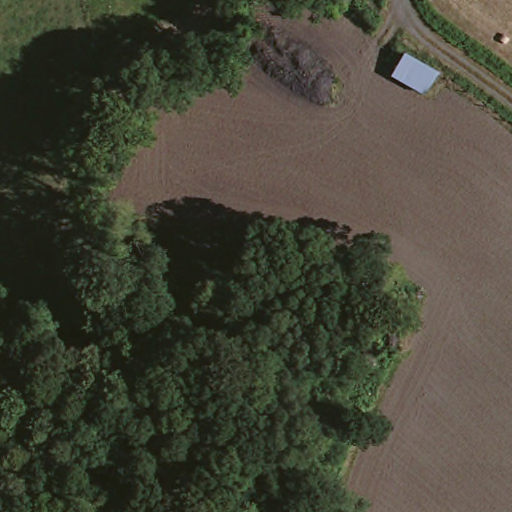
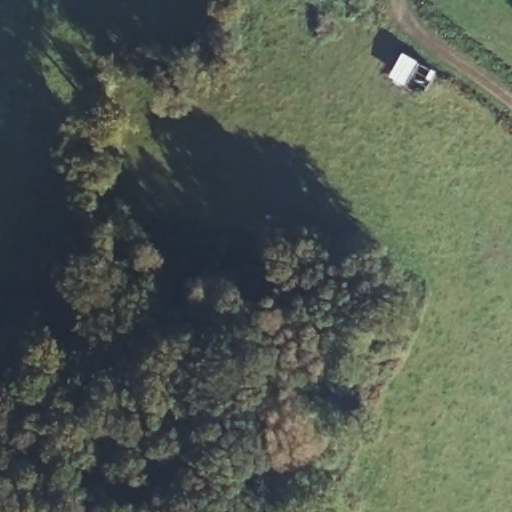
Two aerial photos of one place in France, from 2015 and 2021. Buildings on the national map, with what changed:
unchanged [(384,82),(399,55),(438,78),(420,105),(384,82)]

